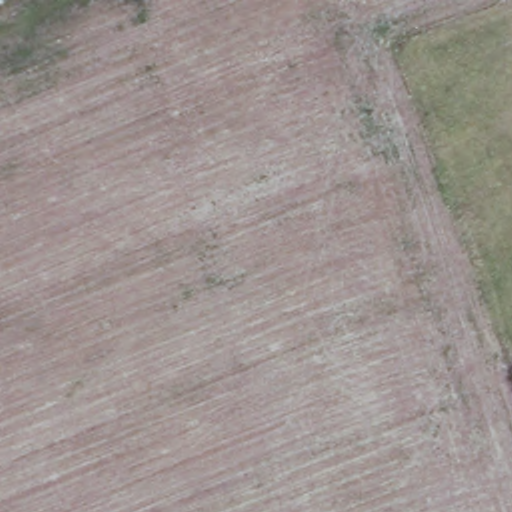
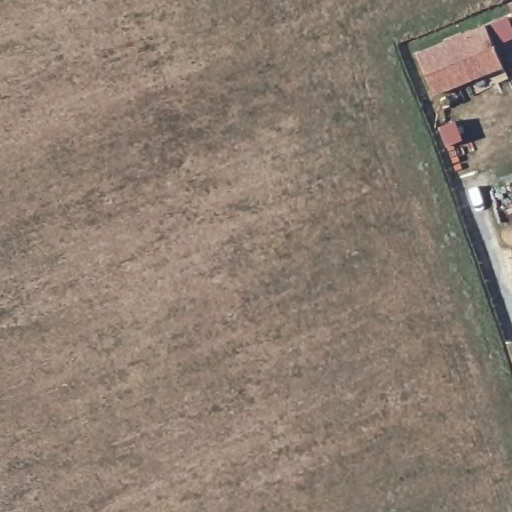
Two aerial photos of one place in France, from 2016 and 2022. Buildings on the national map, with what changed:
new [(496,47),(504,66),(436,95),(418,54),(507,16),(512,28),(512,40),(496,47)]

